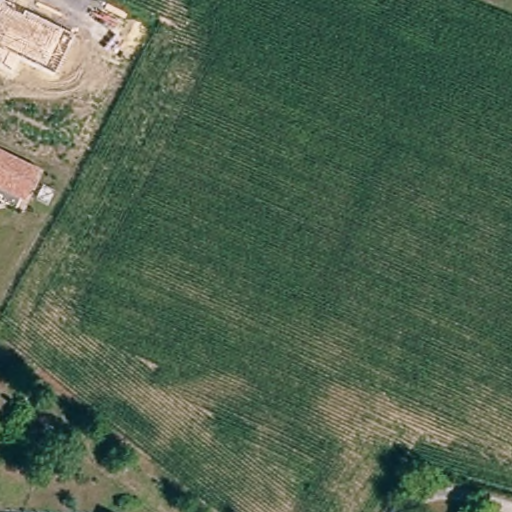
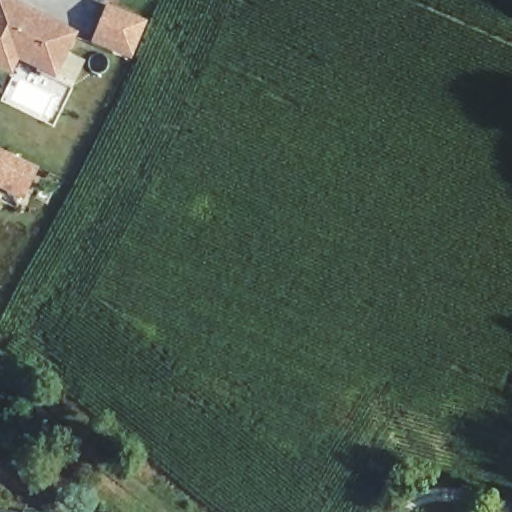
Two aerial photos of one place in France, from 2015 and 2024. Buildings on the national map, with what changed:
unchanged [(55,73),(20,55),(12,70),(0,64),(0,0),(5,0),(75,34),(55,73)]
new [(149,21),(134,60),(92,43),(109,4),(149,21)]
unchanged [(17,189),(21,191),(18,196),(17,196),(15,195),(15,196),(0,189),(0,155),(27,168),(17,189)]

